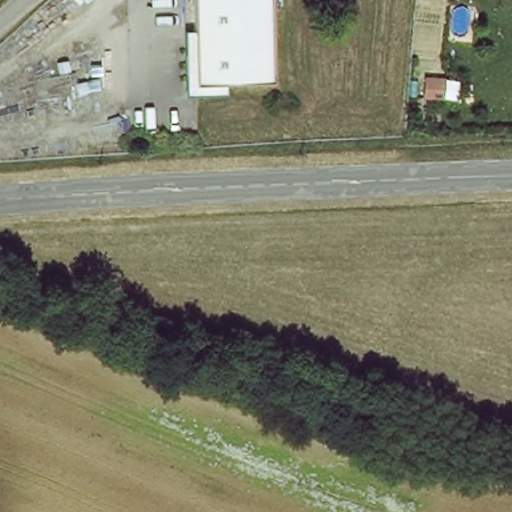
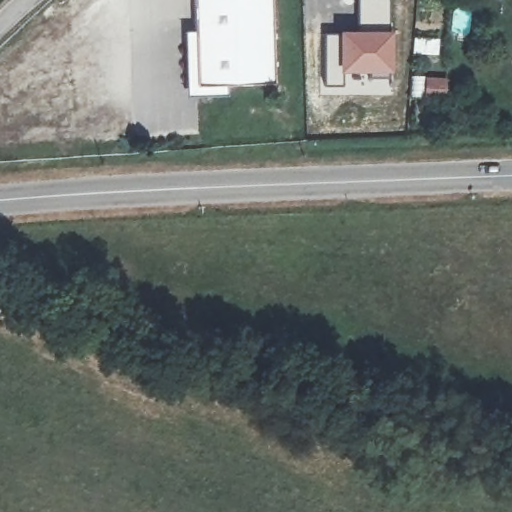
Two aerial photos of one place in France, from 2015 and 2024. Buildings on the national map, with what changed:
unchanged [(278,84),(199,89),(192,0),(272,0),(278,84)]
new [(389,24),(358,24),(358,0),(389,0),(389,24)]
new [(325,84),(324,33),(338,32),(338,30),(393,30),(393,74),(340,74),(341,84),(325,84)]
new [(411,75),(447,77),(446,93),(423,92),(423,95),(410,95),(411,75)]

